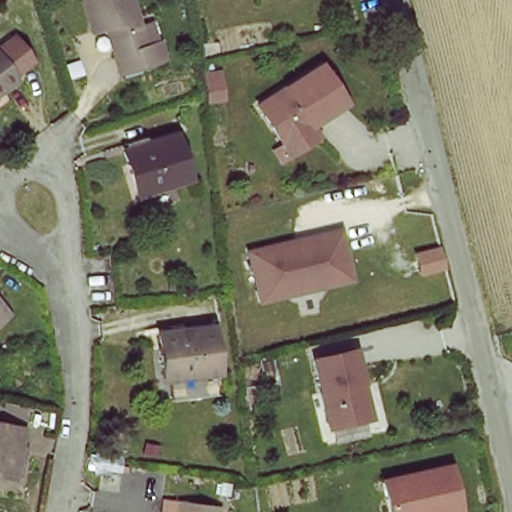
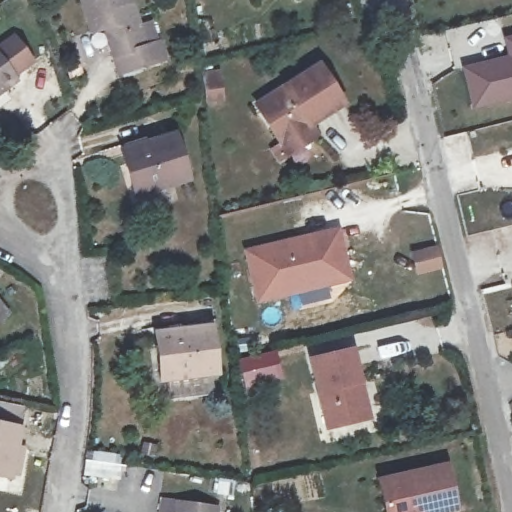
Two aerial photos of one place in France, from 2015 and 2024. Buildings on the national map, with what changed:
unchanged [(157,45),(161,59),(119,71),(115,56),(107,28),(91,31),(82,0),(132,0),(140,27),(150,25),(155,46),(157,45)]
unchanged [(33,57),(14,71),(17,75),(0,88),(0,42),(15,32),(33,57)]
new [(461,66),(507,55),(504,37),(512,35),(512,98),(473,108),(461,66)]
unchanged [(286,154),(278,142),(254,104),(318,65),(342,102),(307,124),(314,136),(286,154)]
unchanged [(207,79),(206,72),(217,71),(221,70),(222,77),(226,98),(220,99),(210,100),(207,79)]
unchanged [(126,149),(183,134),(196,186),(140,202),(126,149)]
unchanged [(346,280),(259,299),(247,250),(303,238),(316,236),(335,231),(346,280)]
unchanged [(434,254),(438,273),(414,279),(410,260),(434,254)]
unchanged [(0,314),(0,299),(7,308),(0,314)]
unchanged [(170,398),(169,376),(158,375),(160,325),(219,324),(224,372),(211,376),(213,395),(170,398)]
unchanged [(357,419),(321,427),(305,359),(346,350),(354,382),(363,418),(357,419)]
unchanged [(34,424),(26,471),(0,466),(0,400),(38,408),(34,424)]
unchanged [(443,467),(453,510),(446,512),(383,512),(375,481),(443,467)]
unchanged [(184,500),(220,505),(219,512),(182,512),(184,500)]

